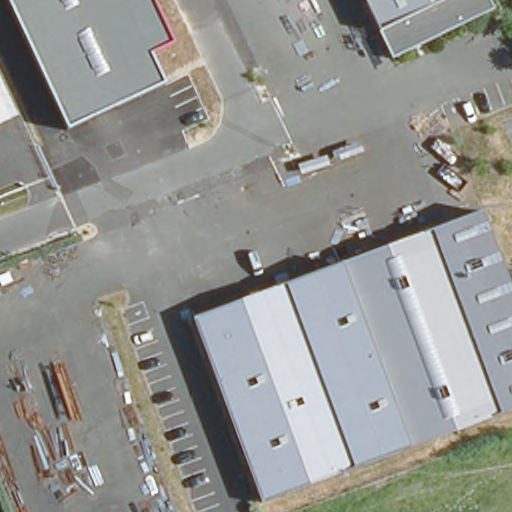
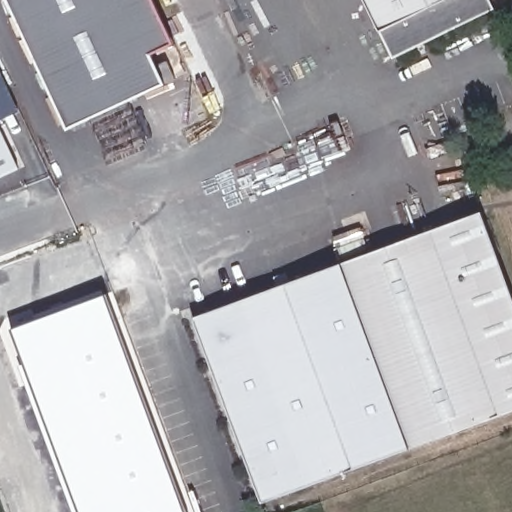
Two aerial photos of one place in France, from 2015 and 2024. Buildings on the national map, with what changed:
unchanged [(151,55),(165,83),(69,131),(7,0),(154,0),(174,43),(151,55)]
unchanged [(492,12),(390,59),(376,26),(363,0),(487,0),(492,12)]
new [(0,177),(0,126),(18,168),(0,177)]
unchanged [(512,293),(512,411),(262,500),(195,316),(481,211),(512,293)]
new [(183,512),(80,512),(12,330),(103,296),(183,512)]

